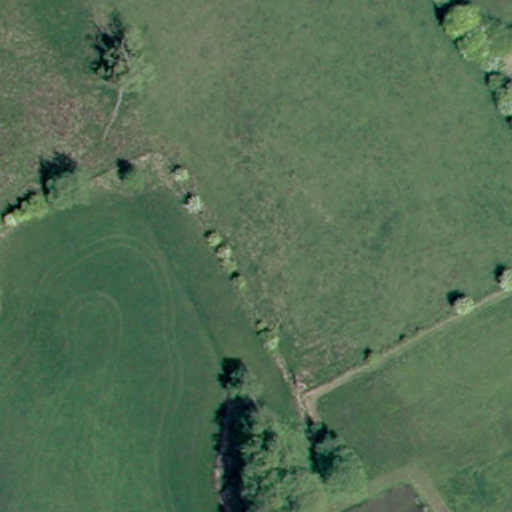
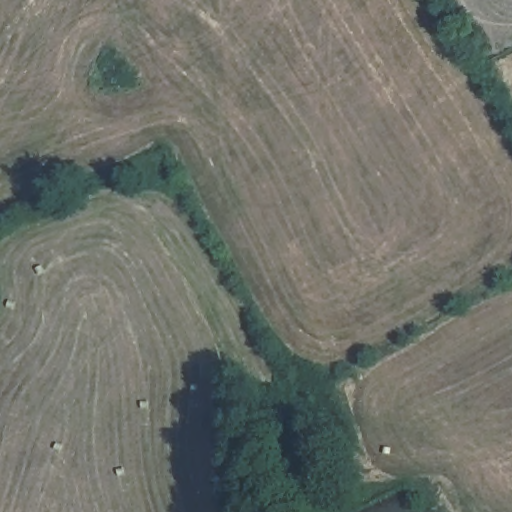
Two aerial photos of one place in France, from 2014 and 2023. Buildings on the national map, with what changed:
[]

